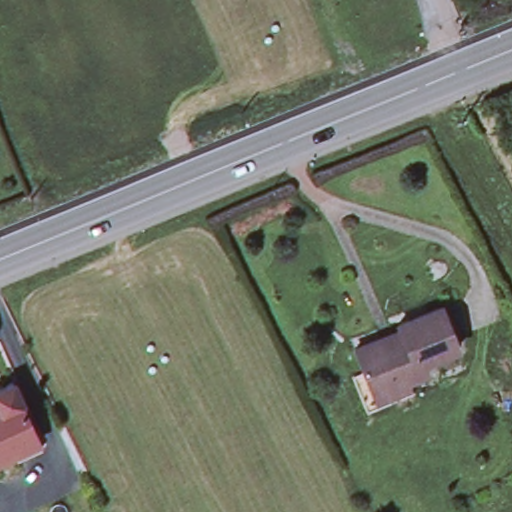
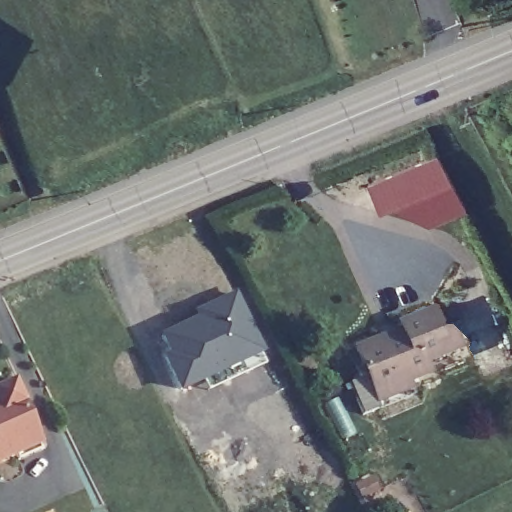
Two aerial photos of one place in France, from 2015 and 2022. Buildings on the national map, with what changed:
new [(437,160),(465,217),(430,230),(389,215),(380,218),(368,188),(437,160)]
new [(201,374),(177,386),(162,354),(169,351),(160,333),(197,315),(195,310),(210,303),(231,292),(263,358),(261,359),(206,386),(201,374)]
unchanged [(354,344),(379,334),(383,343),(402,334),(396,320),(440,303),(457,347),(424,360),(427,369),(406,378),(403,372),(371,384),(364,368),(354,344)]
unchanged [(364,368),(371,384),(403,372),(406,378),(411,393),(365,412),(350,373),(364,368)]
unchanged [(11,454),(0,459),(0,386),(11,382),(20,404),(17,404),(30,434),(36,449),(14,459),(11,454)]

